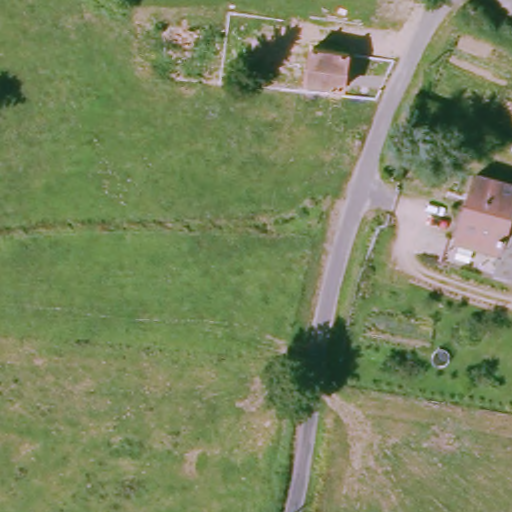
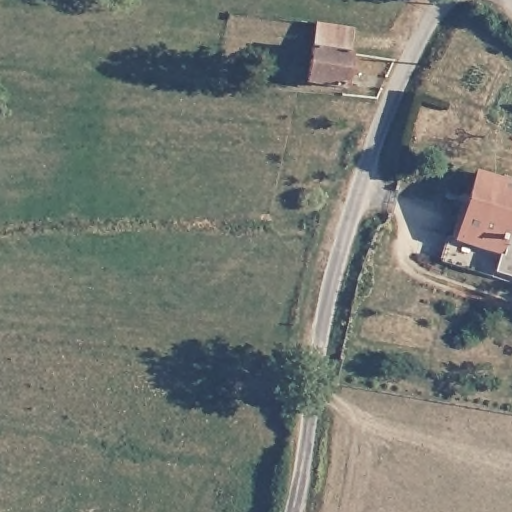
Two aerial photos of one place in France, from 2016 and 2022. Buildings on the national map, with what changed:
unchanged [(341,87),(305,82),(310,47),(348,52),(341,87)]
unchanged [(449,234),(457,236),(476,172),(512,184),(512,206),(506,227),(494,268),(491,278),(456,267),(454,265),(442,254),(449,234)]
unchanged [(512,229),(512,274),(494,268),(506,227),(512,229)]

